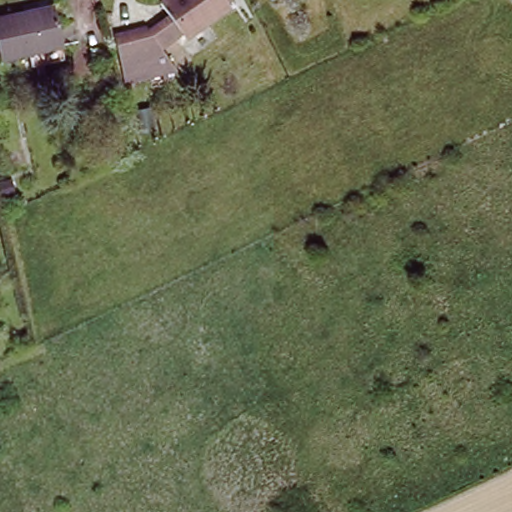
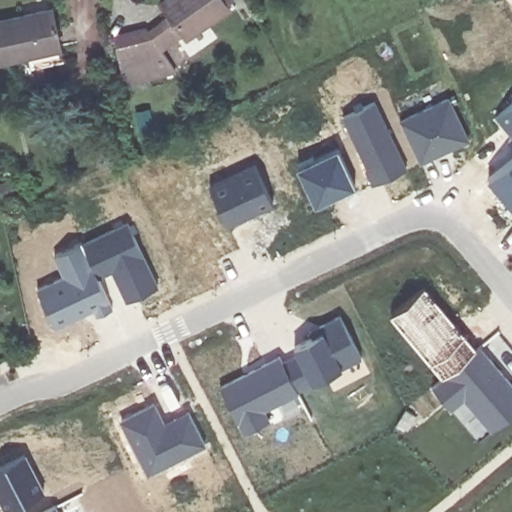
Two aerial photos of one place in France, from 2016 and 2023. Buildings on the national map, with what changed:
unchanged [(230,12),(185,42),(175,26),(162,7),(173,0),(222,0),(230,12)]
unchanged [(61,48),(2,62),(0,56),(0,20),(52,7),(61,48)]
unchanged [(175,71),(126,83),(115,35),(147,28),(175,71)]
new [(448,96),(467,138),(419,161),(400,120),(448,96)]
new [(374,101),(405,168),(372,184),(365,169),(367,167),(342,115),(374,101)]
new [(512,144),(507,139),(512,135),(495,115),(512,101),(512,144)]
new [(337,147),(355,184),(315,203),(297,166),(337,147)]
new [(512,206),(488,177),(512,156),(512,206)]
new [(127,221),(158,285),(127,300),(115,274),(122,271),(119,265),(97,275),(82,242),(127,221)]
new [(422,286),(475,348),(442,376),(390,313),(422,286)]
new [(294,345),(312,335),(309,330),(318,325),(339,315),(360,355),(297,389),(282,360),(298,352),(294,345)]
new [(475,348),(479,345),(512,384),(512,411),(490,428),(463,396),(450,407),(431,385),(442,376),(475,348)]
new [(279,354),(282,360),(297,389),(263,408),(268,417),(243,431),(220,385),(279,354)]
new [(164,422),(173,418),(188,410),(205,442),(148,471),(121,419),(153,402),(164,422)]
new [(405,408),(415,415),(407,428),(397,421),(405,408)]
new [(60,512),(40,512),(55,504),(60,512)]

